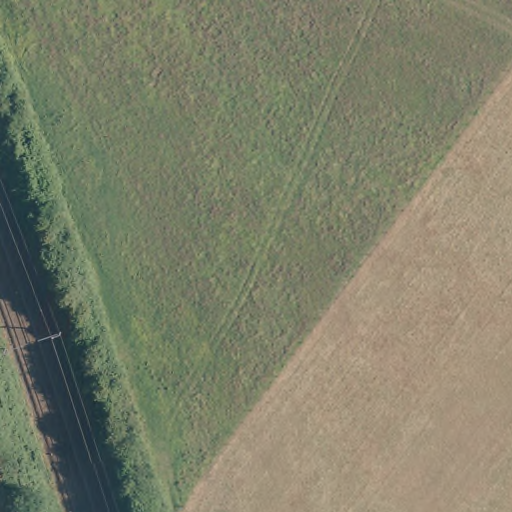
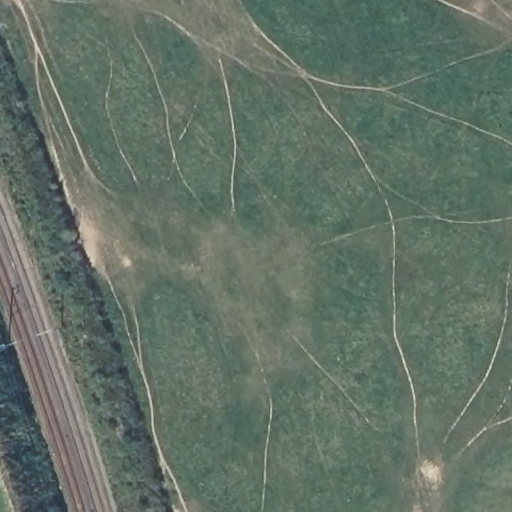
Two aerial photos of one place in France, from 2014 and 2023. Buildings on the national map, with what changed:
[]

